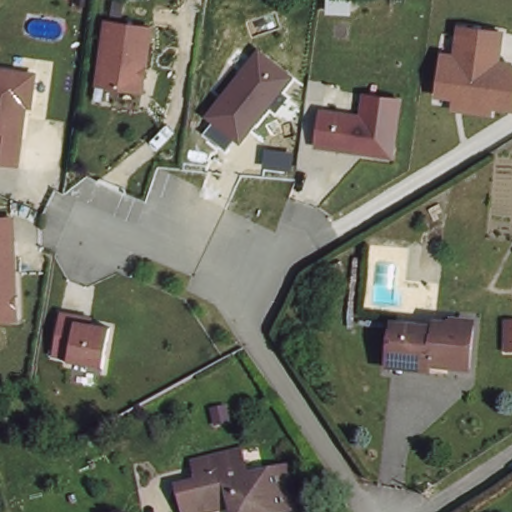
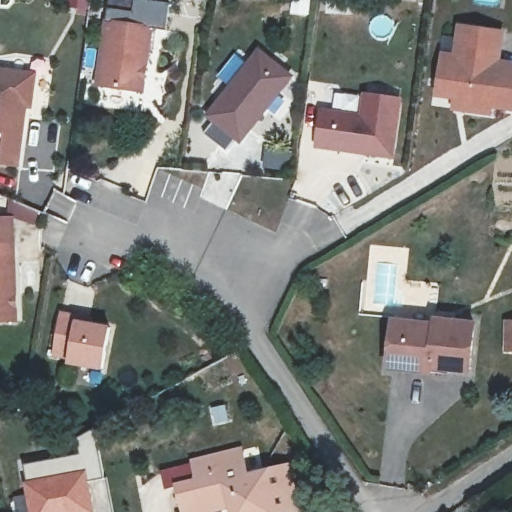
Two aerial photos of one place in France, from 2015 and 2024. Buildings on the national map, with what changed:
unchanged [(149,92),(98,85),(107,20),(155,25),(149,92)]
unchanged [(505,31),(502,60),(510,60),(512,63),(512,110),(495,109),(495,115),(452,109),(453,100),(436,99),(443,52),(453,53),(457,25),(505,31)]
unchanged [(293,77),(240,144),(208,115),(260,49),(293,77)]
unchanged [(29,109),(23,165),(0,163),(0,67),(40,70),(35,109),(29,109)]
unchanged [(400,156),(317,147),(320,107),(362,112),(363,90),(407,97),(400,156)]
unchanged [(22,321),(0,321),(0,240),(18,240),(22,321)]
unchanged [(95,315),(92,322),(114,326),(105,367),(69,362),(70,356),(55,353),(63,310),(95,315)]
unchanged [(512,321),(512,347),(510,347),(511,321),(512,321)]
unchanged [(390,372),(392,360),(395,326),(435,330),(435,324),(473,326),(470,373),(431,370),(430,376),(390,372)]
unchanged [(218,512),(203,512),(201,504),(185,508),(179,487),(200,481),(196,465),(243,452),(250,480),(293,469),(300,493),(303,508),(290,511),(286,512),(234,512),(233,508),(218,512)]
new [(25,480),(27,480),(25,465),(85,453),(87,466),(97,512),(30,512),(25,480)]

